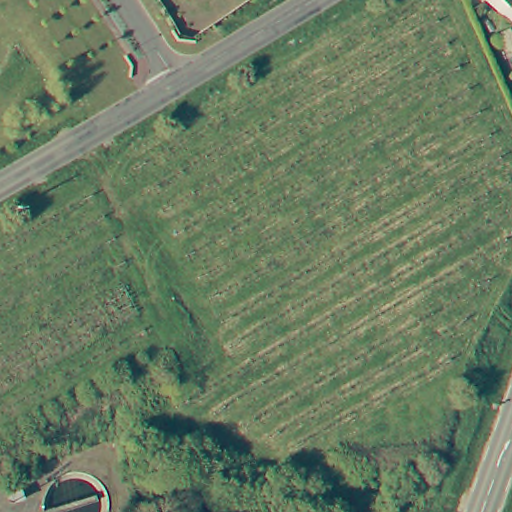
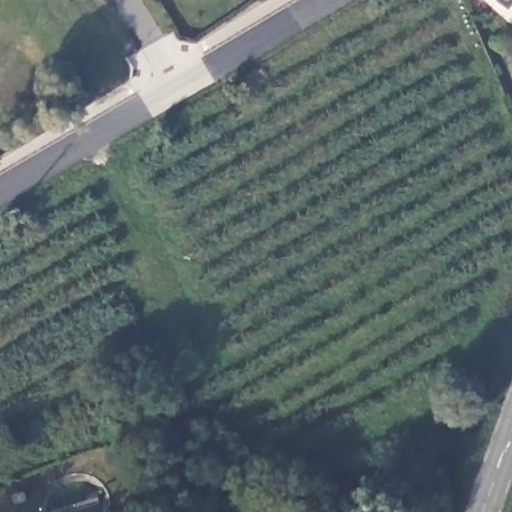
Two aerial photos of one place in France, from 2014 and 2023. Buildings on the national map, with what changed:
unchanged [(503,6),(502,7),(494,0),(508,0),(503,6)]

